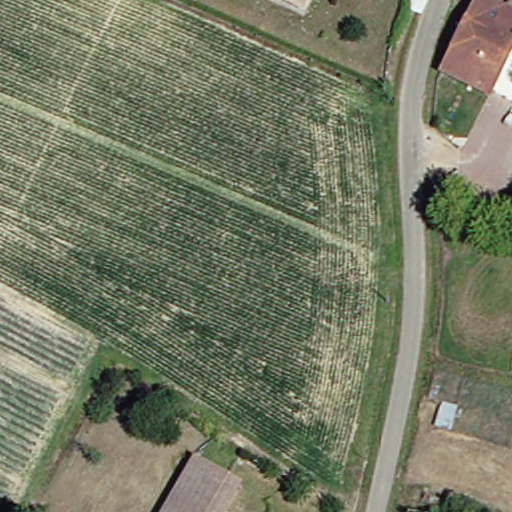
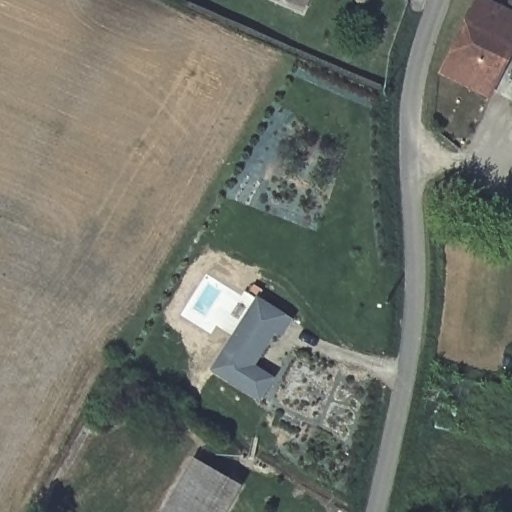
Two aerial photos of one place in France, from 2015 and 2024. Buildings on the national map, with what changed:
unchanged [(285,0),(308,0),(305,7),(285,0)]
unchanged [(512,61),(495,93),(446,69),(482,0),(507,0),(512,3),(512,61)]
new [(292,320),(281,336),(276,333),(254,365),(274,378),(259,401),(209,370),(256,296),(292,320)]
unchanged [(214,512),(169,512),(202,453),(236,473),(214,512)]

